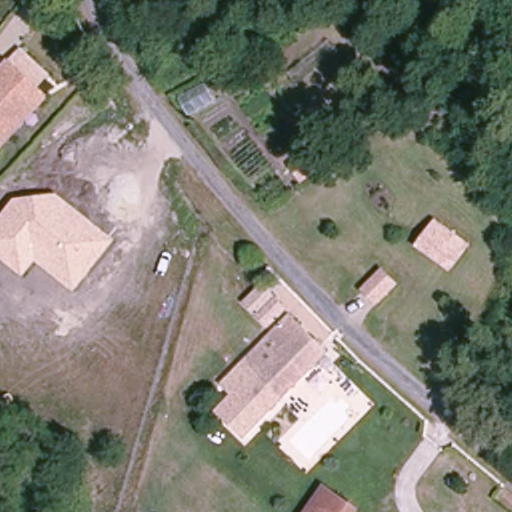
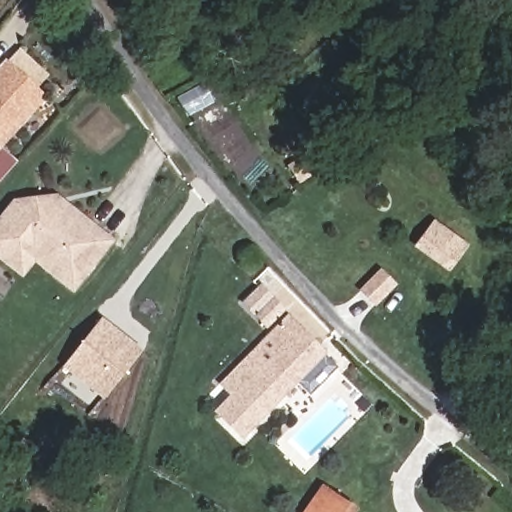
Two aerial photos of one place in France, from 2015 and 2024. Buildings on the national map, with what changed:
unchanged [(2,152),(0,149),(0,72),(4,67),(35,93),(46,102),(2,152)]
unchanged [(74,291),(39,262),(27,277),(0,255),(0,221),(18,199),(62,194),(117,241),(74,291)]
unchanged [(404,228),(391,220),(397,206),(412,215),(404,228)]
unchanged [(453,257),(423,236),(434,223),(463,241),(453,257)]
unchanged [(375,307),(358,290),(380,269),(398,286),(375,307)]
unchanged [(269,326),(248,301),(263,287),(287,312),(269,326)]
new [(65,365),(103,317),(143,348),(105,396),(65,365)]
unchanged [(330,362),(240,439),(215,408),(231,394),(218,379),(291,317),(330,362)]
unchanged [(306,512),(322,488),(355,512),(306,512)]

